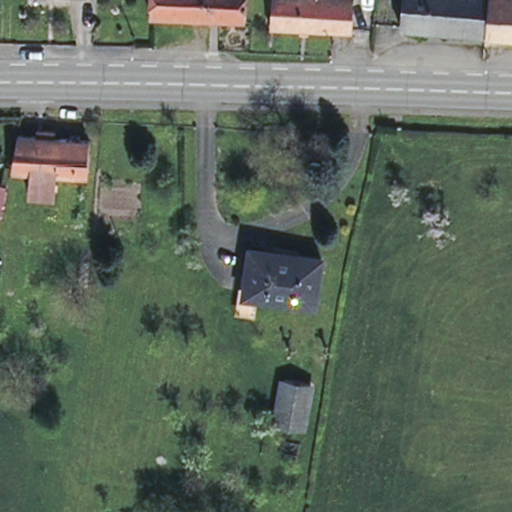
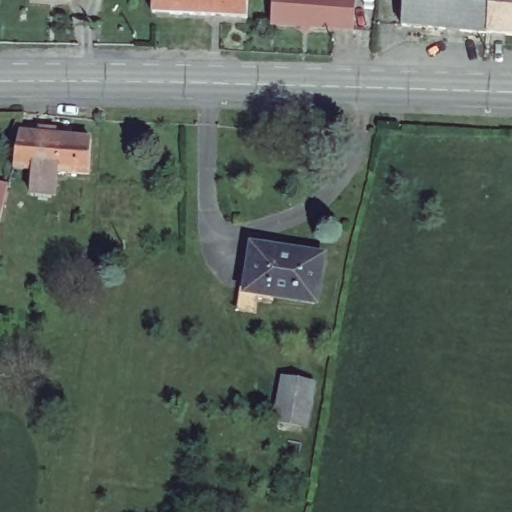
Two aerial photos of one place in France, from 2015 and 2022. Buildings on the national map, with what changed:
unchanged [(184,17),(146,16),(147,0),(242,0),(241,21),(184,17)]
unchanged [(352,29),(343,28),(281,22),(283,0),(365,0),(363,30),(352,29)]
unchanged [(401,24),(403,0),(445,0),(442,27),(401,24)]
unchanged [(442,27),(445,0),(490,0),(487,32),(442,27)]
unchanged [(490,0),(512,0),(512,33),(487,32),(490,0)]
unchanged [(10,194),(13,167),(18,132),(90,135),(88,171),(57,170),(55,192),(30,192),(30,194),(10,194)]
unchanged [(7,182),(0,219),(0,181),(7,182)]
unchanged [(298,256),(298,252),(320,257),(313,302),(245,291),(252,247),(298,256)]
unchanged [(307,382),(297,427),(272,422),(280,377),(307,382)]

